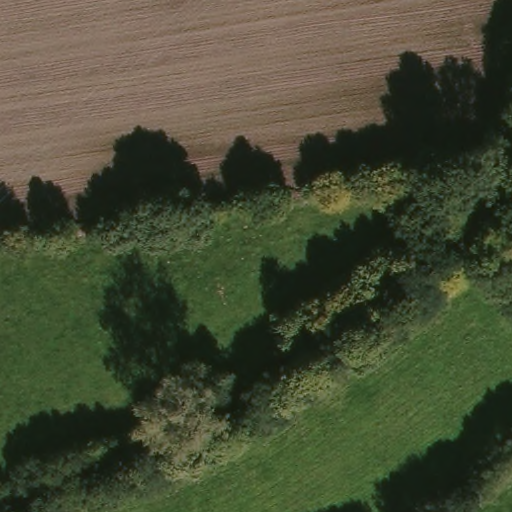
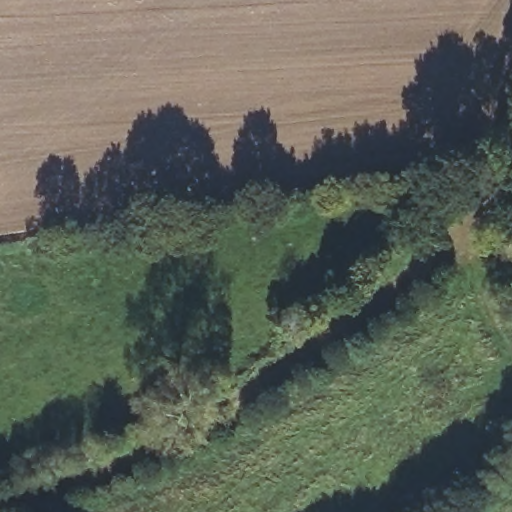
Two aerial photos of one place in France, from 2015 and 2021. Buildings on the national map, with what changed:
[]

